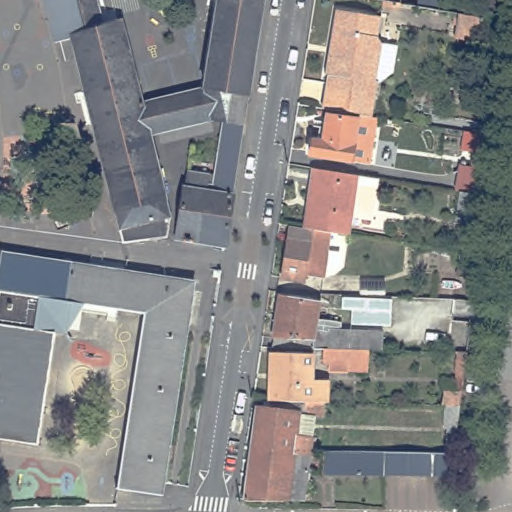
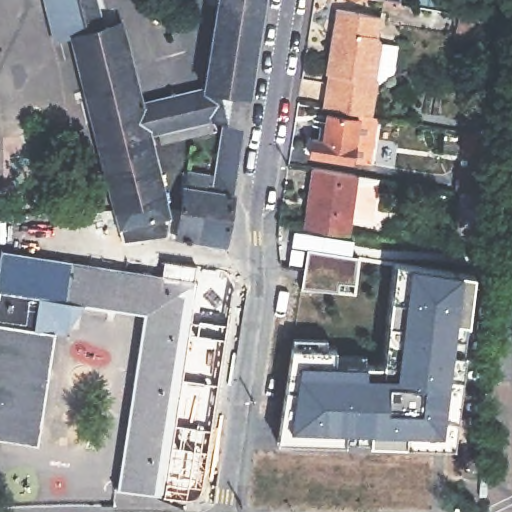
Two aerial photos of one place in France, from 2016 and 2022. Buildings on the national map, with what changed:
unchanged [(175,213),(172,232),(129,237),(76,32),(60,37),(50,0),(103,0),(104,2),(105,2),(110,22),(126,17),(146,99),(154,131),(175,213)]
unchanged [(222,0),(267,0),(229,241),(218,239),(214,229),(211,228),(203,236),(181,232),(192,165),(214,169),(211,184),(218,185),(229,115),(216,113),(209,83),(222,0)]
unchanged [(378,79),(371,115),(358,113),(322,107),(328,73),(326,73),(329,53),(338,54),(339,46),(331,44),(337,8),(381,16),(378,35),(382,41),(380,52),(375,79),(378,79)]
unchanged [(163,129),(154,131),(146,99),(209,83),(216,113),(219,126),(165,139),(163,129)]
unchanged [(312,137),(323,139),(327,113),(357,118),(358,113),(371,115),(377,116),(369,164),(351,160),(351,161),(309,154),(312,137)]
unchanged [(470,191),(465,190),(470,166),(481,167),(486,133),(503,136),(495,195),(493,223),(466,219),(470,191)]
unchanged [(313,167),(357,174),(378,178),(377,186),(372,220),(351,217),(349,234),(330,232),(309,228),(304,227),(308,200),(313,167)]
demolished [(291,225),(304,227),(309,228),(330,232),(325,278),(305,275),(304,281),(282,278),(291,225)]
new [(356,257),(352,283),(337,282),(335,292),(301,288),(307,250),(356,257)]
unchanged [(3,290),(0,290),(0,282),(6,251),(199,282),(166,494),(122,488),(149,313),(76,301),(71,333),(60,331),(41,443),(0,437),(0,297),(1,297),(3,290)]
demolished [(458,252),(480,255),(475,282),(454,280),(458,252)]
new [(474,275),(455,447),(276,441),(292,336),(327,338),(326,347),(336,348),(335,352),(365,354),(364,364),(383,365),(395,262),(474,275)]
demolished [(279,294),(320,300),(317,318),(312,347),(272,346),(279,294)]
demolished [(444,405),(441,405),(443,389),(454,389),(455,377),(458,352),(449,351),(454,299),(472,300),(466,352),(459,405),(456,429),(446,428),(442,427),(444,405)]
demolished [(322,347),(328,348),(329,329),(341,330),(381,331),(381,349),(368,349),(367,372),(348,372),(348,363),(328,363),(322,362),(322,347)]
demolished [(270,352),(311,352),(312,379),(330,379),(329,401),(324,401),(269,400),(270,352)]
demolished [(256,405),(269,406),(269,400),(324,401),(324,418),(314,417),(315,415),(301,413),(298,435),(312,436),(310,451),(251,446),(256,405)]
demolished [(251,446),(310,451),(303,500),(245,499),(251,446)]
demolished [(323,451),(453,453),(450,474),(323,472),(323,451)]

